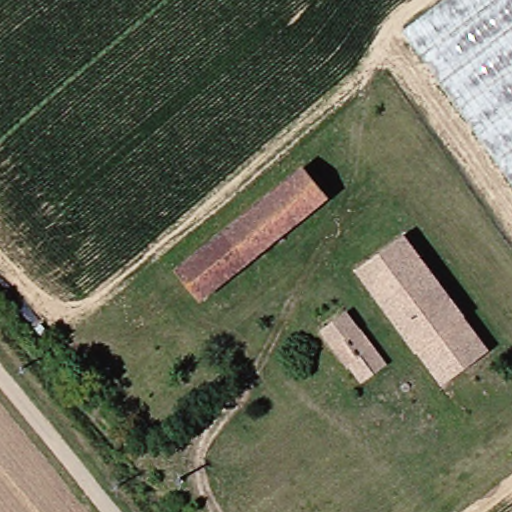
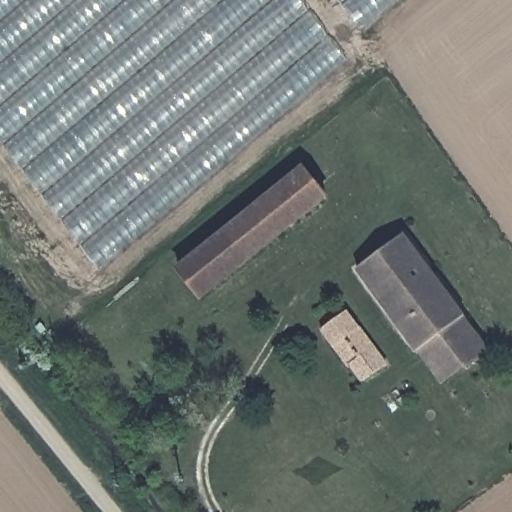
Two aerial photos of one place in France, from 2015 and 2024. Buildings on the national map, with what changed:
new [(100,271),(0,140),(0,0),(300,0),(347,60),(100,271)]
new [(339,0),(399,0),(361,30),(339,0)]
new [(403,30),(444,0),(512,0),(512,182),(403,30)]
unchanged [(233,234),(312,169),(332,194),(251,260),(233,234)]
unchanged [(347,256),(390,221),(454,303),(450,309),(415,338),(347,256)]
unchanged [(204,298),(185,272),(233,234),(251,260),(204,298)]
unchanged [(450,309),(496,366),(459,392),(415,338),(450,309)]
unchanged [(395,362),(372,381),(328,330),(353,311),(395,362)]

